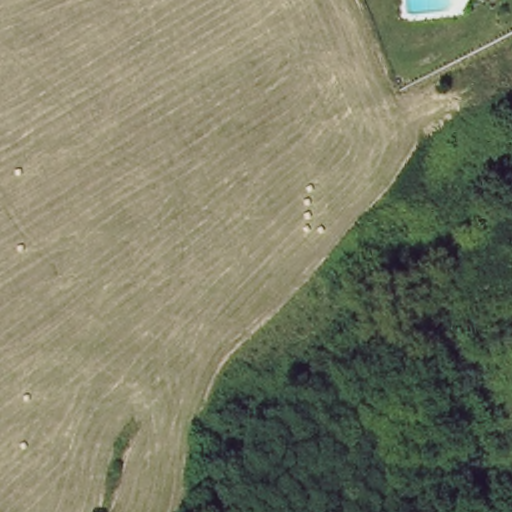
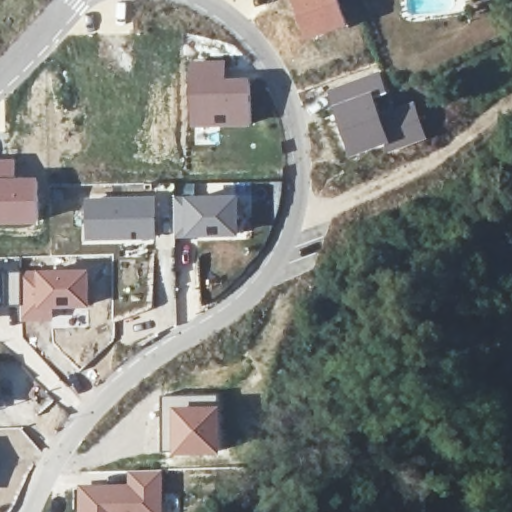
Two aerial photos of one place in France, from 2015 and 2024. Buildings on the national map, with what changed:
new [(308,40),(293,0),(340,0),(349,25),(308,40)]
new [(225,58),(227,78),(251,77),(252,125),(190,126),(188,60),(225,58)]
new [(379,70),(389,93),(377,99),(382,112),(392,145),(353,158),(325,89),(379,70)]
new [(414,100),(429,138),(394,149),(392,145),(382,112),(414,100)]
new [(16,158),(17,177),(40,176),(40,224),(0,225),(0,158),(16,158)]
new [(240,193),(242,237),(175,239),(173,195),(240,193)]
new [(156,194),(157,240),(85,241),(84,196),(156,194)]
new [(90,266),(92,307),(55,308),(55,322),(22,323),(22,305),(0,306),(0,270),(90,266)]
new [(170,404),(222,405),(222,454),(170,454),(170,404)]
new [(132,473),(160,473),(162,512),(83,512),(83,489),(132,487),(132,473)]

